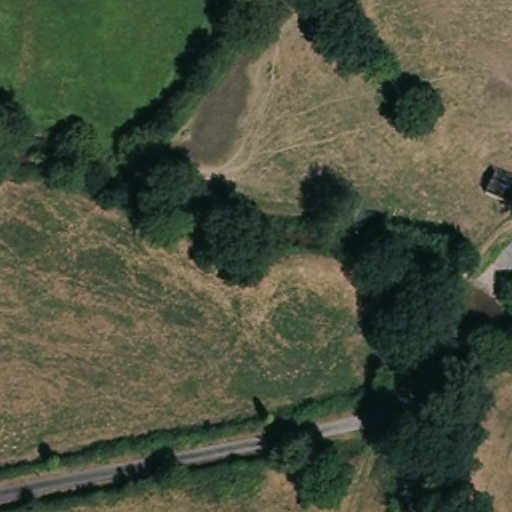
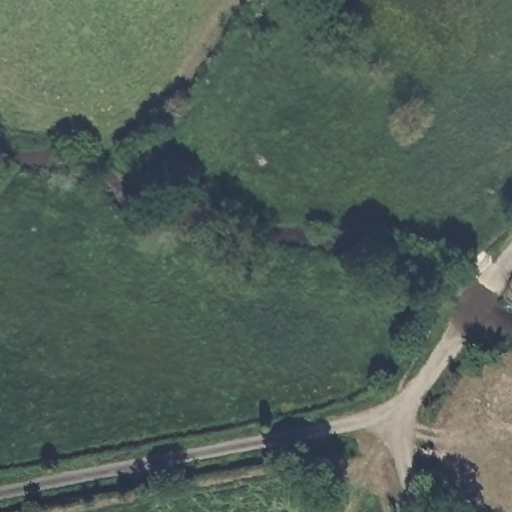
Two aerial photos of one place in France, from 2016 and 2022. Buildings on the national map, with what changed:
unchanged [(494,176),(512,182),(512,206),(487,197),(494,176)]

